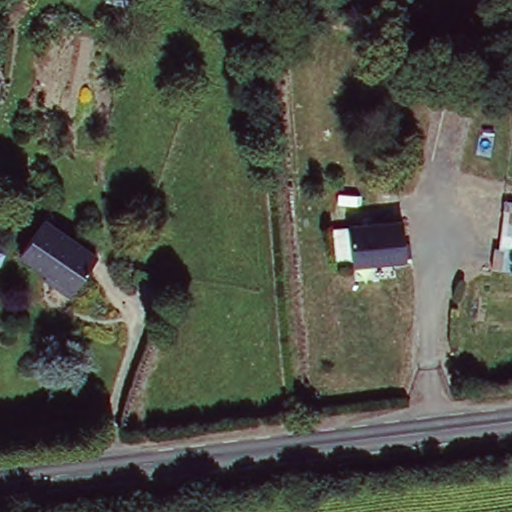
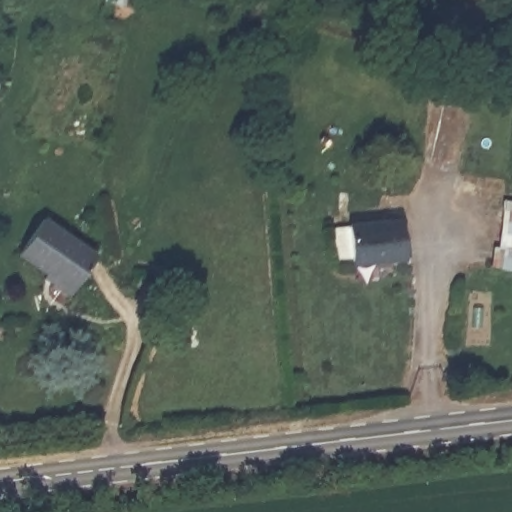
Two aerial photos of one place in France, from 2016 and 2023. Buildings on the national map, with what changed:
unchanged [(512,200),(512,271),(492,269),(500,199),(512,200)]
unchanged [(103,250),(75,294),(46,273),(49,267),(25,252),(46,214),(103,250)]
unchanged [(405,214),(410,255),(355,262),(351,221),(405,214)]

